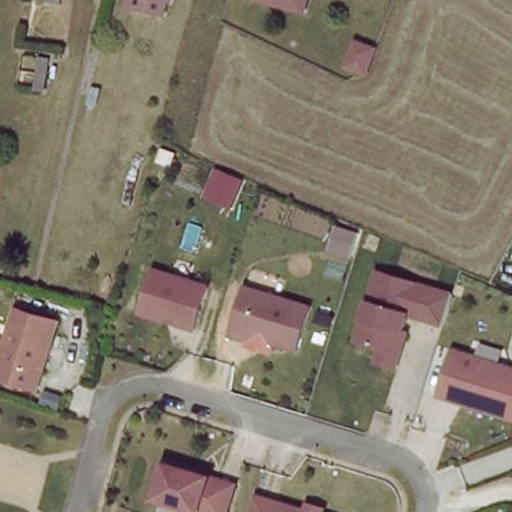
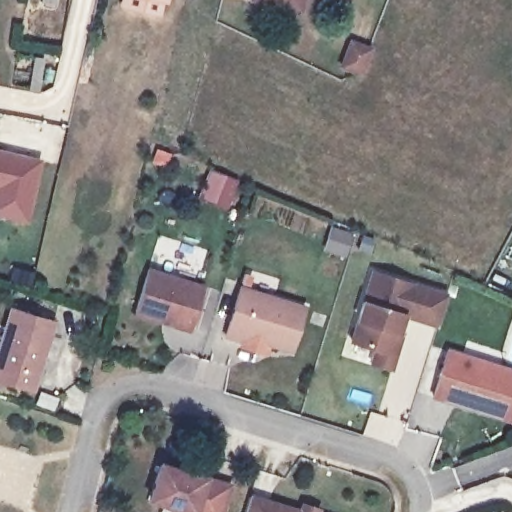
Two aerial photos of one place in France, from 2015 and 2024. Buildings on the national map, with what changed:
unchanged [(300,0),(299,5),(279,0),(300,0)]
unchanged [(360,60),(359,65),(340,58),(349,34),(368,40),(360,60)]
new [(25,222),(0,216),(0,149),(41,158),(25,222)]
unchanged [(214,169),(240,180),(229,207),(202,195),(214,169)]
unchanged [(191,333),(136,316),(148,267),(206,279),(191,333)]
unchanged [(441,327),(404,317),(393,369),(368,362),(370,345),(349,340),(368,268),(447,291),(441,327)]
unchanged [(289,351),(223,336),(234,285),(301,305),(289,351)]
unchanged [(55,323),(33,390),(0,380),(0,334),(9,308),(55,323)]
unchanged [(426,396),(444,348),(512,368),(512,417),(511,420),(426,396)]
unchanged [(221,512),(192,512),(147,499),(157,460),(231,481),(221,512)]
unchanged [(302,512),(247,512),(253,495),(302,512)]

